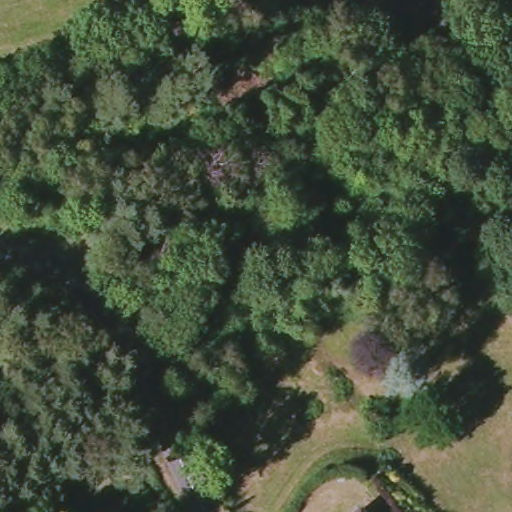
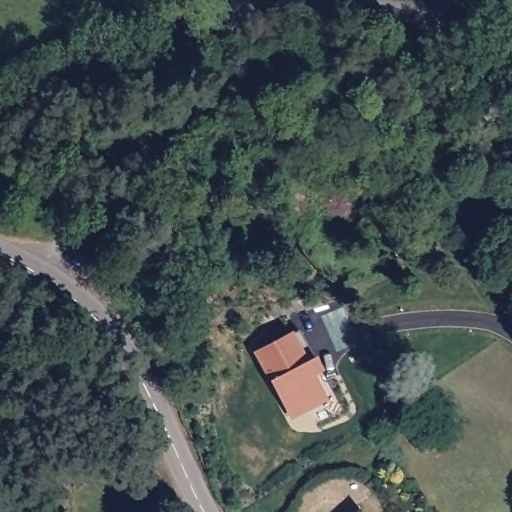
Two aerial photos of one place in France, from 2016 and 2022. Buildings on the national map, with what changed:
new [(315,356),(322,370),(341,408),(316,423),(308,410),(291,419),(271,381),(253,352),(293,331),(299,329),(315,356)]
unchanged [(359,512),(356,512),(358,510),(359,512)]

